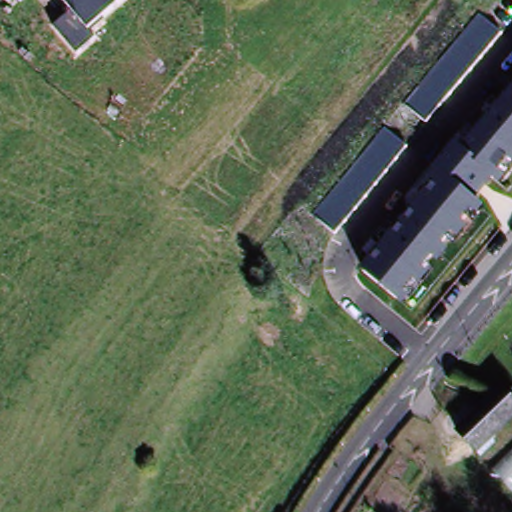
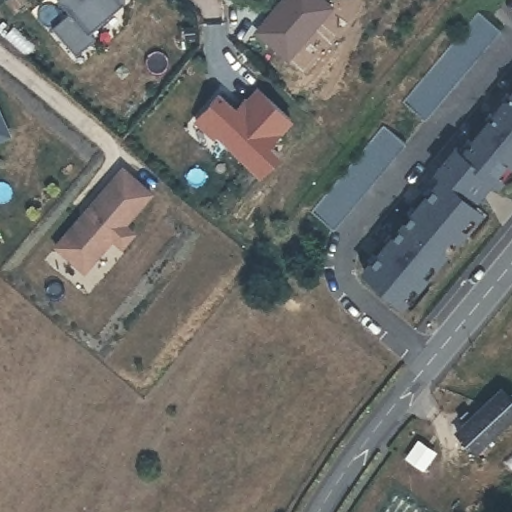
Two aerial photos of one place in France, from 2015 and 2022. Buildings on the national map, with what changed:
unchanged [(63,0),(124,0),(89,30),(95,37),(77,54),(53,26),(72,10),(63,0)]
unchanged [(500,30),(426,121),(402,102),(477,12),(500,30)]
unchanged [(507,162),(498,172),(507,179),(500,187),(493,182),(476,202),(485,210),(478,217),(472,212),(463,224),(468,228),(458,241),(453,236),(445,247),(450,251),(439,265),(433,260),(425,271),(430,276),(421,287),(415,282),(406,292),(412,297),(404,306),(362,271),(441,174),(435,169),(458,144),(463,149),(512,88),(512,164),(507,162)]
new [(217,98),(233,112),(242,102),(245,104),(255,91),(290,120),(268,145),(279,154),(262,175),(217,137),(213,140),(195,125),(217,98)]
new [(0,142),(0,121),(8,139),(0,142)]
unchanged [(405,145),(335,232),(312,213),(383,127),(405,145)]
new [(109,190),(127,181),(150,200),(123,232),(132,240),(122,252),(112,244),(84,277),(55,252),(109,190)]
unchanged [(512,394),(512,426),(499,436),(478,451),(463,427),(470,422),(512,394)]

